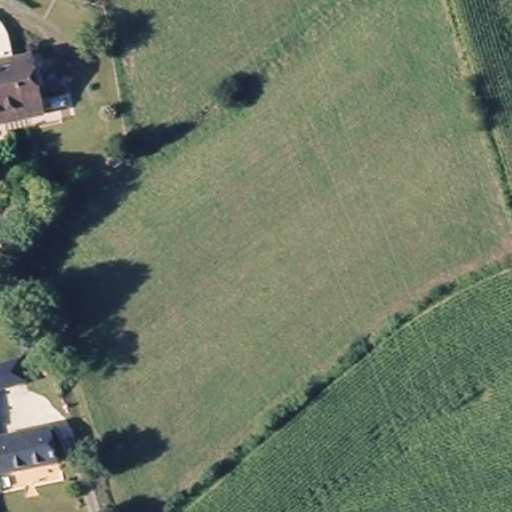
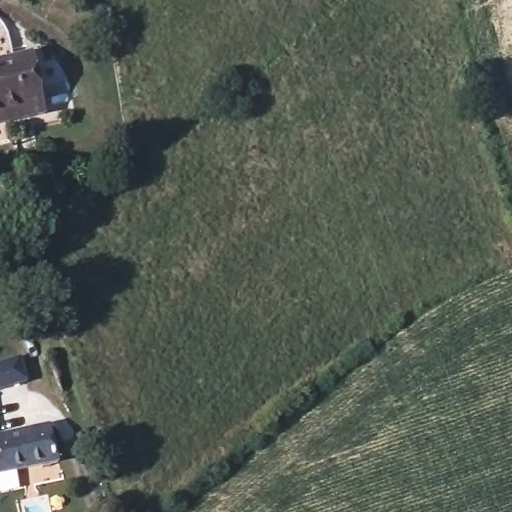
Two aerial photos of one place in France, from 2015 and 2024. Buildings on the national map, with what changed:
unchanged [(0,66),(32,59),(42,104),(45,115),(0,125),(0,66)]
unchanged [(31,385),(0,394),(0,369),(24,362),(31,385)]
unchanged [(62,466),(1,481),(0,476),(0,444),(52,430),(62,466)]

